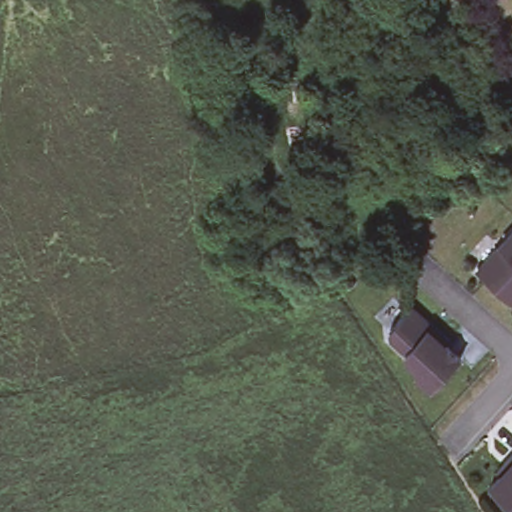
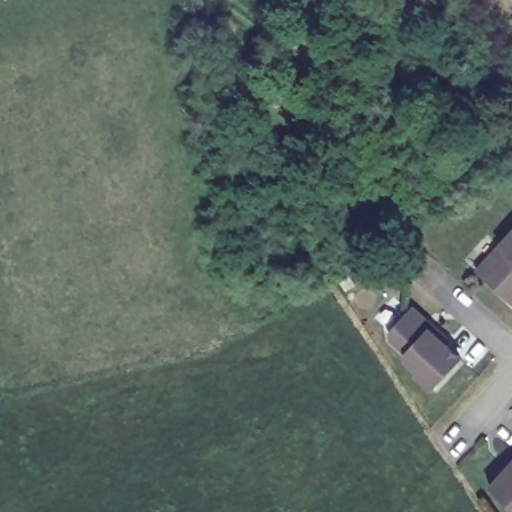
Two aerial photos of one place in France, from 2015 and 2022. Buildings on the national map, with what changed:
unchanged [(500,247),(512,234),(512,304),(477,272),(500,247)]
unchanged [(423,316),(444,336),(440,340),(456,354),(427,385),(411,369),(413,366),(401,355),(401,348),(386,334),(385,327),(404,306),(412,306),(423,316)]
unchanged [(503,474),(499,470),(512,456),(512,508),(490,487),(503,474)]

